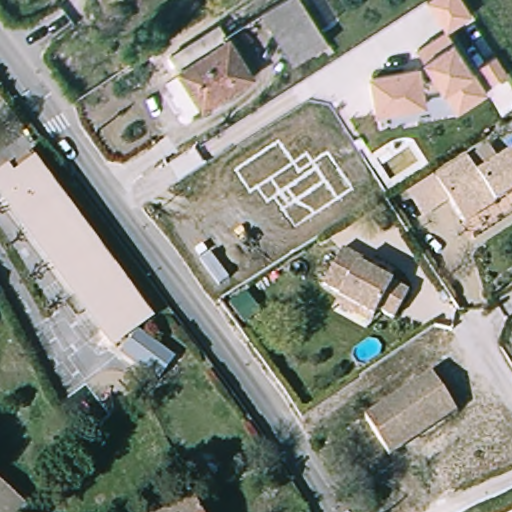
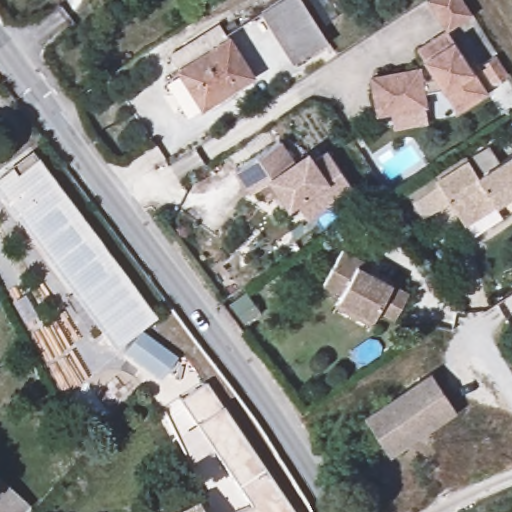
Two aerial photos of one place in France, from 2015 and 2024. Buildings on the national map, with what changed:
unchanged [(328,44),(298,63),(265,12),(285,0),(299,0),(328,44)]
unchanged [(472,13),(448,28),(486,90),(458,109),(441,85),(425,88),(427,102),(376,112),(369,72),(425,63),(415,45),(444,27),(426,0),(464,0),(472,13)]
unchanged [(203,107),(176,69),(169,54),(218,21),(226,36),(252,75),(203,107)]
unchanged [(508,72),(491,82),(479,63),(497,52),(508,72)]
new [(296,205),(288,209),(268,181),(249,194),(235,172),(282,139),(294,158),(308,148),(315,158),(328,149),(356,189),(308,221),(296,205)]
unchanged [(110,340),(0,186),(0,171),(11,164),(31,150),(36,157),(150,313),(110,340)]
unchanged [(468,154),(478,170),(512,150),(512,187),(462,217),(436,173),(468,154)]
unchanged [(451,199),(424,217),(406,190),(436,173),(451,199)]
unchanged [(335,308),(340,297),(343,292),(325,282),(340,255),(380,275),(383,269),(394,275),(413,284),(394,320),(378,312),(376,315),(370,326),(335,308)]
unchanged [(176,354),(161,376),(124,349),(138,328),(176,354)]
unchanged [(437,368),(462,408),(424,433),(423,432),(394,450),(367,410),(437,368)]
new [(178,396),(202,381),(221,405),(292,512),(233,512),(250,504),(195,422),(178,396)]
new [(199,439),(214,467),(192,478),(177,450),(199,439)]
unchanged [(24,512),(0,512),(0,482),(20,500),(28,508),(24,512)]
unchanged [(200,512),(162,512),(192,495),(200,512)]

